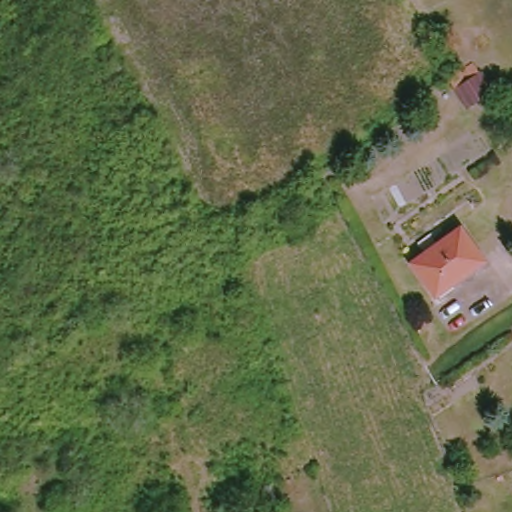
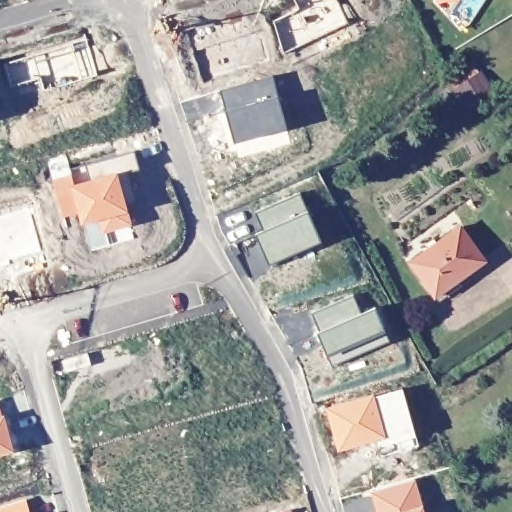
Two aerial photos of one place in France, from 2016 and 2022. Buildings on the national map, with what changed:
new [(347,21),(282,53),(272,22),(302,7),(298,0),(337,0),(347,21)]
new [(255,16),(269,61),(207,79),(194,35),(255,16)]
new [(87,44),(97,76),(45,91),(47,99),(17,108),(5,65),(73,45),(74,48),(87,44)]
unchanged [(466,106),(457,90),(450,78),(475,63),(481,73),(491,91),(466,106)]
new [(220,91),(273,76),(288,129),(235,143),(220,91)]
new [(105,229),(100,214),(84,219),(81,211),(63,216),(52,175),(132,152),(137,170),(130,172),(139,203),(125,206),(130,221),(105,229)]
new [(263,231),(255,213),(300,194),(321,243),(270,266),(256,234),(263,231)]
new [(0,268),(0,218),(29,209),(41,251),(9,261),(10,265),(0,268)]
unchanged [(431,296),(408,264),(456,227),(480,260),(431,296)]
new [(354,295),(362,314),(376,308),(390,341),(332,367),(318,333),(320,332),(312,314),(354,295)]
new [(405,389),(415,437),(382,448),(380,442),(337,453),(327,410),(405,389)]
new [(0,453),(0,413),(2,418),(4,418),(13,449),(0,453)]
new [(415,479),(422,508),(424,512),(380,512),(374,491),(415,479)]
unchanged [(251,506),(247,493),(269,486),(273,498),(251,506)]
new [(0,512),(0,510),(27,502),(30,512),(0,512)]
new [(291,512),(289,512),(290,511),(291,512)]

